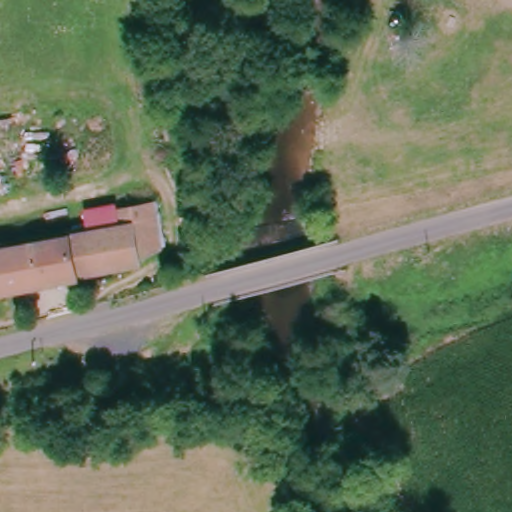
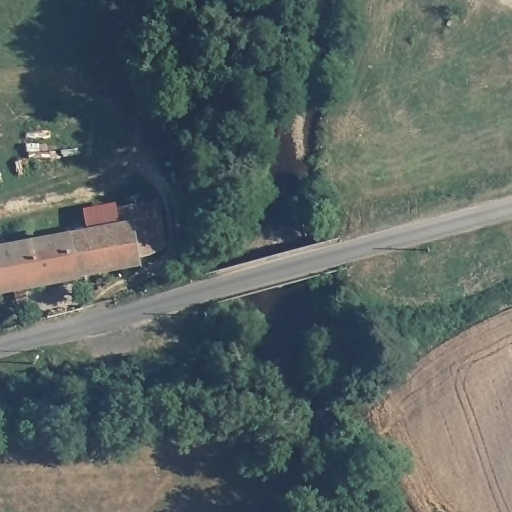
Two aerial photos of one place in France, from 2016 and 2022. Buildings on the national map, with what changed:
unchanged [(153,246),(131,251),(131,260),(71,270),(71,275),(19,283),(21,301),(9,304),(8,286),(0,288),(0,245),(121,225),(119,206),(144,201),(153,246)]

